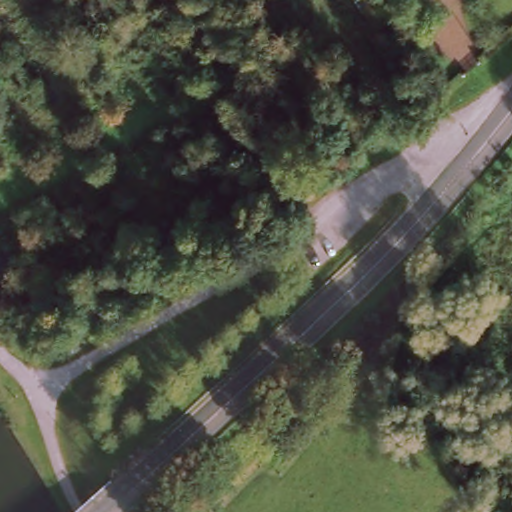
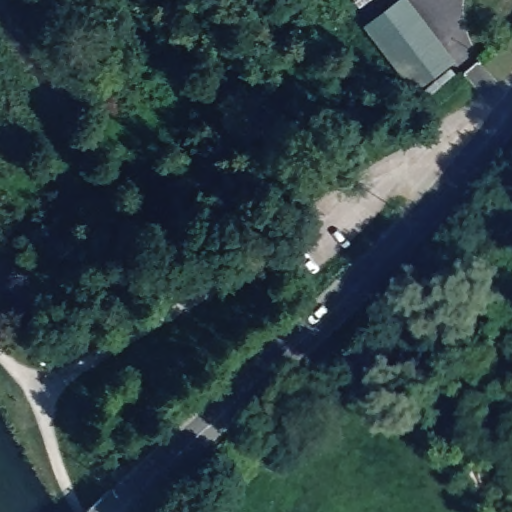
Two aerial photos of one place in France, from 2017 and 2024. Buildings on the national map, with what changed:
new [(404,78),(364,26),(398,0),(408,0),(454,61),(417,90),(404,78)]

